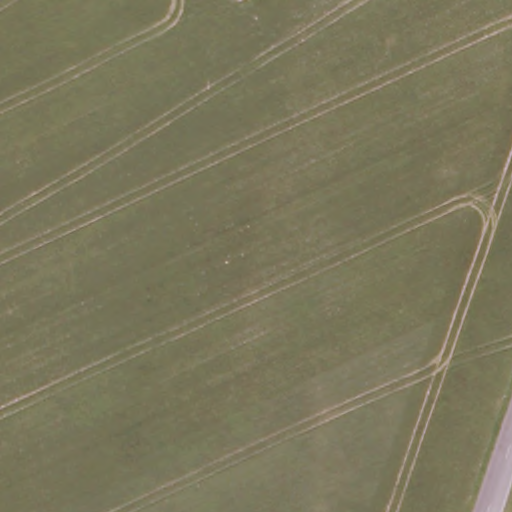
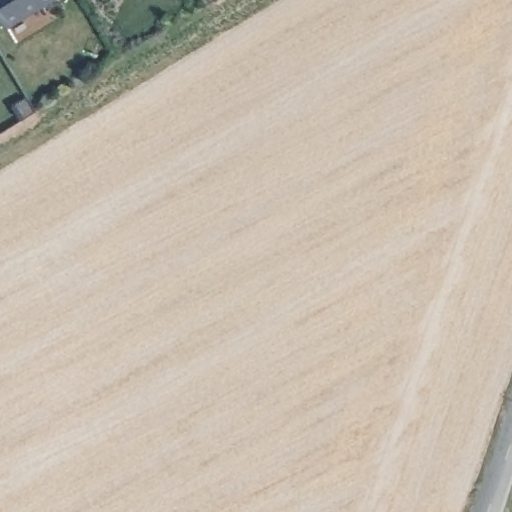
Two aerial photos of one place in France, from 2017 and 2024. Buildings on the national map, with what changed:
new [(0,5),(0,0),(57,0),(12,27),(0,5)]

